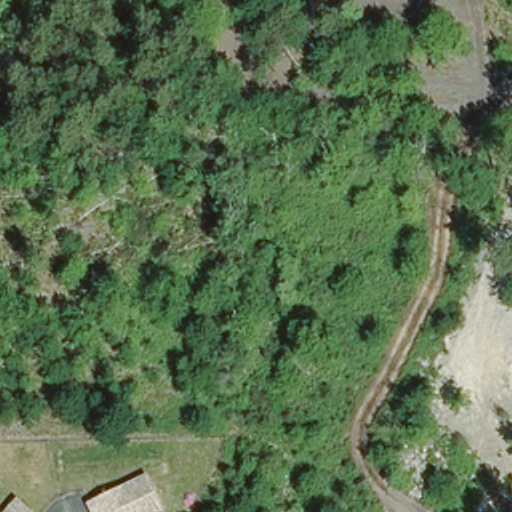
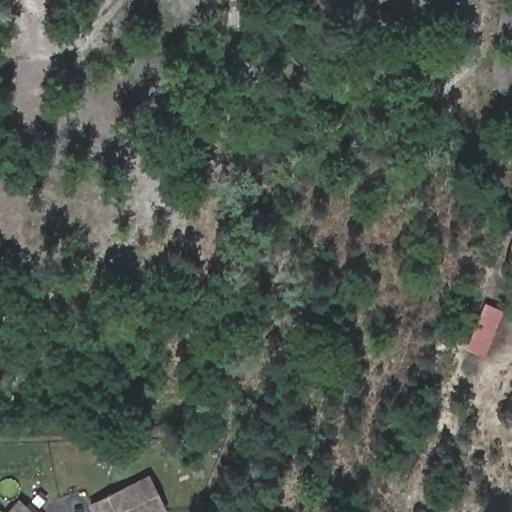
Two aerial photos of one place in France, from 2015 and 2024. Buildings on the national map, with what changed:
unchanged [(157,512),(91,512),(87,504),(146,477),(161,510),(157,512)]
unchanged [(15,498),(30,512),(2,512),(15,498)]

